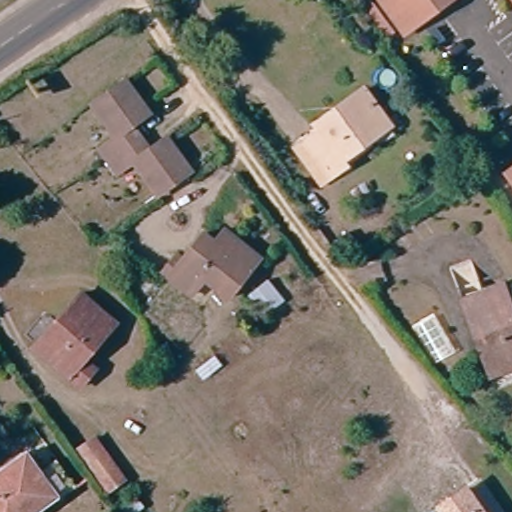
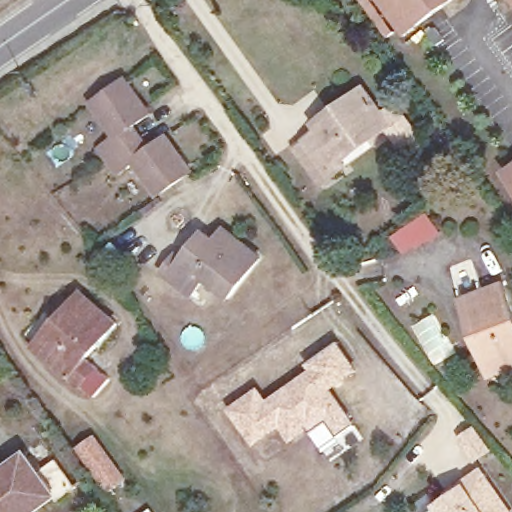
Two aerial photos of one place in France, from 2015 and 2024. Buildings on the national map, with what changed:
unchanged [(388,35),(364,0),(375,0),(397,29),(388,35)]
unchanged [(389,0),(443,0),(407,25),(389,0)]
unchanged [(153,110),(134,124),(151,148),(169,136),(192,169),(159,192),(135,160),(120,171),(102,145),(119,134),(96,100),(130,77),(153,110)]
unchanged [(378,126),(382,131),(335,166),(338,172),(322,184),(298,150),(313,139),(308,131),(335,112),(357,96),(378,126)]
unchanged [(512,172),(512,174),(511,172),(512,172)]
new [(427,243),(426,241),(414,249),(412,246),(403,252),(392,237),(427,214),(442,234),(427,243)]
unchanged [(235,301),(212,285),(203,298),(172,276),(185,257),(194,263),(215,235),(223,241),(230,231),(246,242),(268,258),(235,301)]
unchanged [(485,348),(466,296),(502,283),(512,307),(512,362),(488,370),(481,351),(485,348)]
unchanged [(120,315),(90,352),(100,360),(85,380),(39,342),(87,287),(120,315)]
new [(260,386),(267,397),(307,368),(305,364),(337,340),(358,370),(333,390),(356,422),(337,436),(326,421),(290,442),(280,428),(254,446),(227,408),(260,386)]
unchanged [(122,478),(107,490),(77,450),(93,438),(122,478)]
unchanged [(54,493),(29,512),(0,512),(0,474),(25,455),(54,493)]
new [(467,482),(489,512),(470,512),(460,497),(440,512),(427,512),(467,482)]
unchanged [(460,497),(470,512),(440,512),(460,497)]
new [(150,510),(152,512),(147,512),(150,510)]

